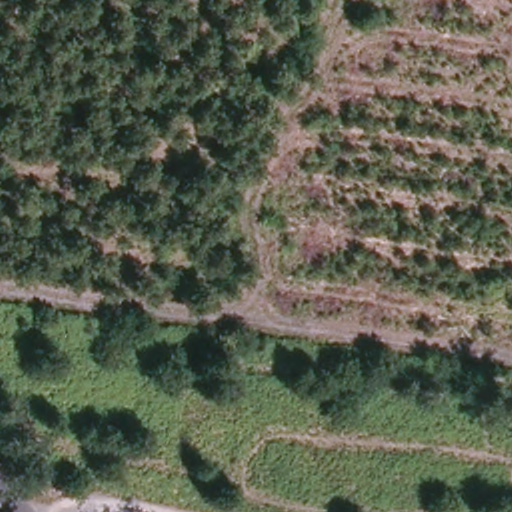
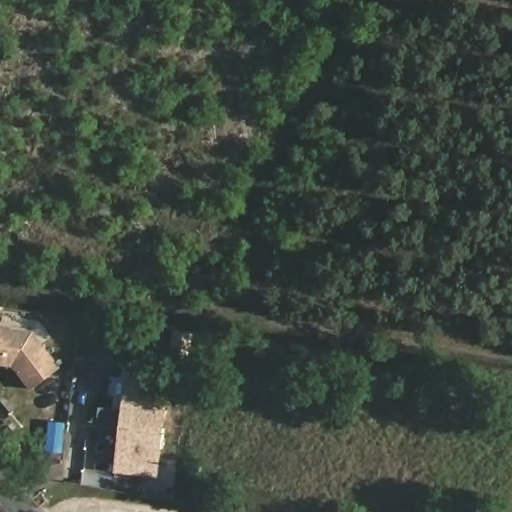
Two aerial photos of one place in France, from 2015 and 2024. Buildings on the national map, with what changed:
new [(15,365),(0,364),(0,327),(34,331),(60,367),(30,388),(15,365)]
new [(157,475),(118,471),(121,426),(100,425),(102,406),(121,407),(125,374),(166,379),(157,475)]

